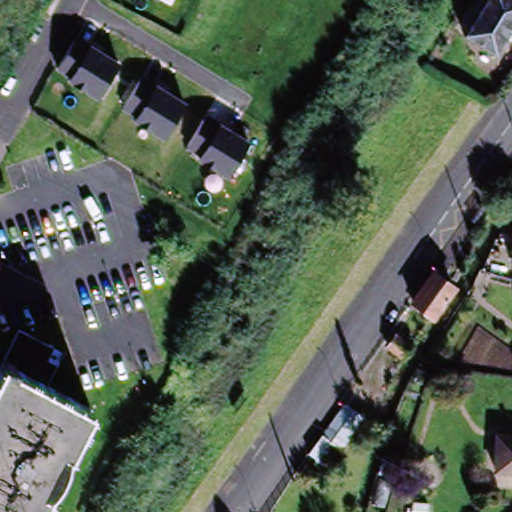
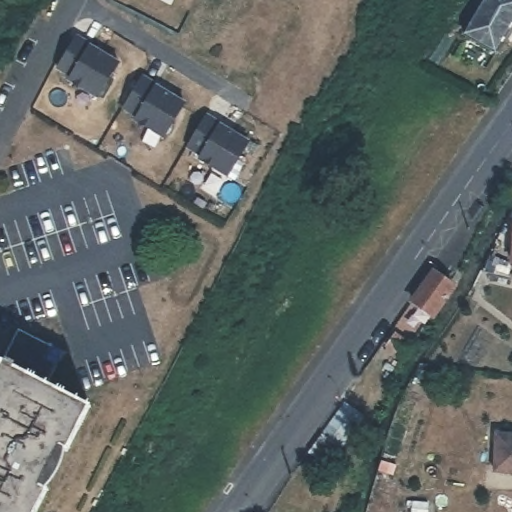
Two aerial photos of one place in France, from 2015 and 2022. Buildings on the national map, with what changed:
unchanged [(154,0),(157,0),(157,1),(154,0)]
unchanged [(487,0),(512,0),(512,30),(496,57),(465,39),(487,0)]
unchanged [(68,82),(70,78),(57,67),(75,34),(120,64),(99,100),(68,82)]
unchanged [(187,103),(166,139),(132,121),(134,116),(122,109),(144,74),(187,103)]
unchanged [(250,142),(229,180),(195,160),(198,155),(186,148),(207,112),(250,142)]
unchanged [(436,310),(436,311),(433,314),(411,299),(416,291),(433,267),(456,283),(436,310)]
unchanged [(69,356),(65,365),(62,363),(49,389),(91,410),(69,453),(62,450),(42,489),(49,492),(39,512),(0,512),(0,374),(21,332),(69,356)]
unchanged [(411,347),(403,359),(387,348),(395,336),(411,347)]
unchanged [(360,417),(323,471),(312,464),(315,458),(308,454),(342,404),(360,417)]
unchanged [(495,471),(497,436),(512,437),(512,473),(495,471)]

